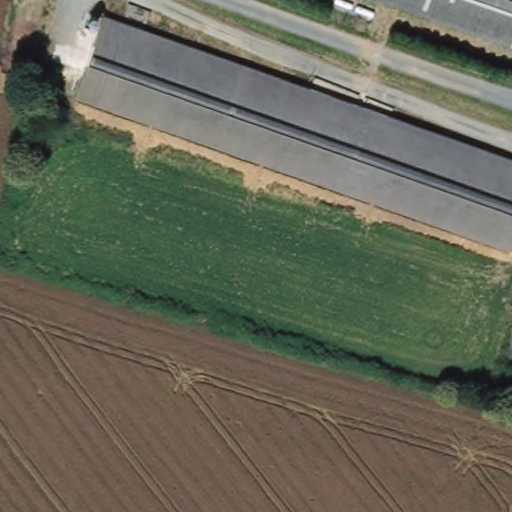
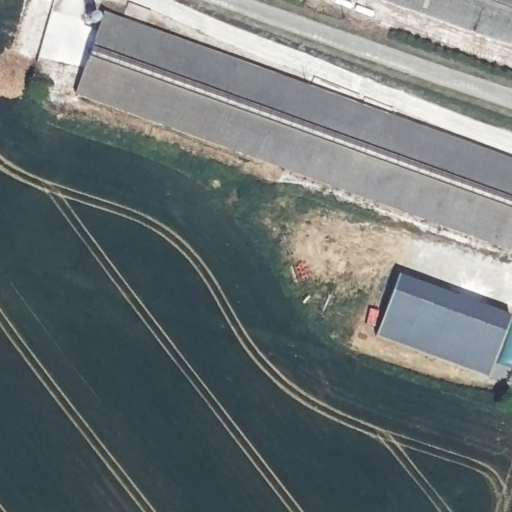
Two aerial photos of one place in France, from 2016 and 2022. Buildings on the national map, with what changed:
unchanged [(378,0),(512,0),(512,48),(378,0)]
unchanged [(512,162),(512,240),(508,250),(72,94),(101,14),(512,162)]
new [(487,373),(376,336),(397,273),(509,315),(487,373)]

